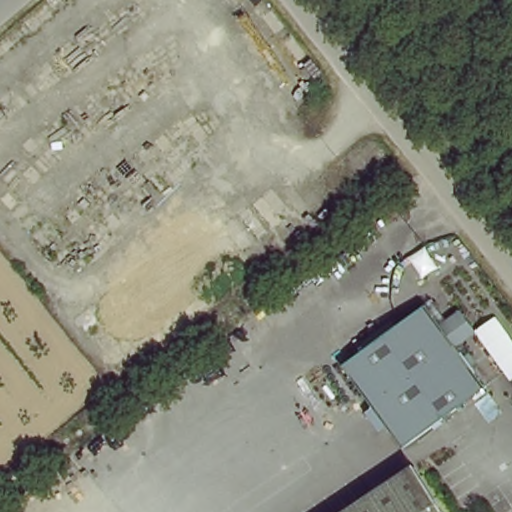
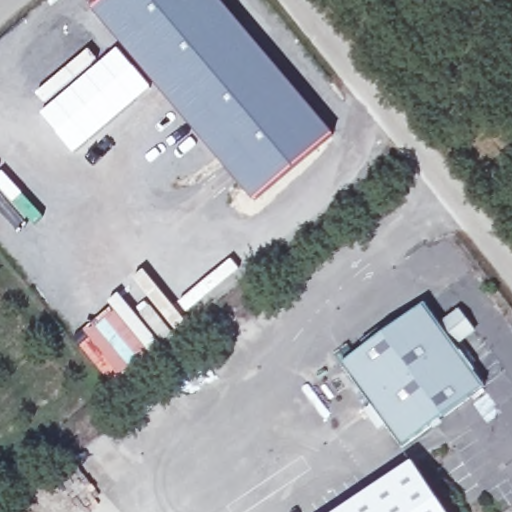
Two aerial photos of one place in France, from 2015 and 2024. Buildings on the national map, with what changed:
new [(253,201),(93,8),(104,0),(218,0),(331,136),(253,201)]
unchanged [(446,331),(466,317),(481,339),(461,352),(490,395),(404,455),(346,369),(432,310),(446,331)]
unchanged [(416,462),(449,512),(340,512),(416,462)]

